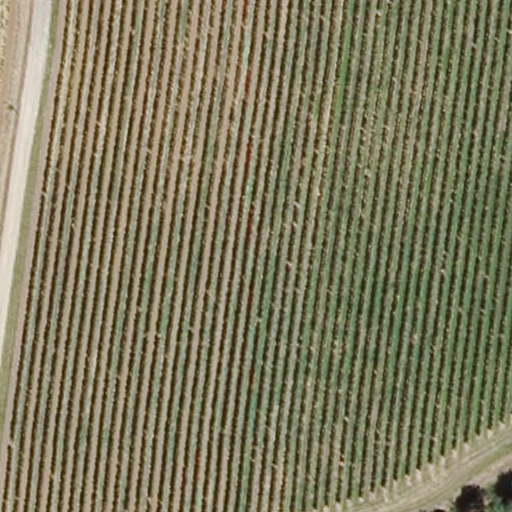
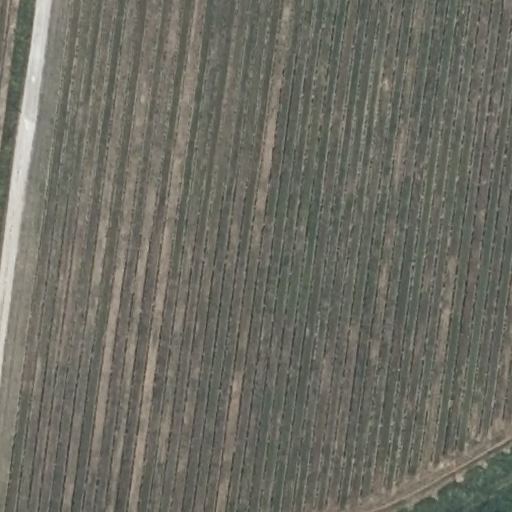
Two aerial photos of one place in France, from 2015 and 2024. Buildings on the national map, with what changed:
[]

